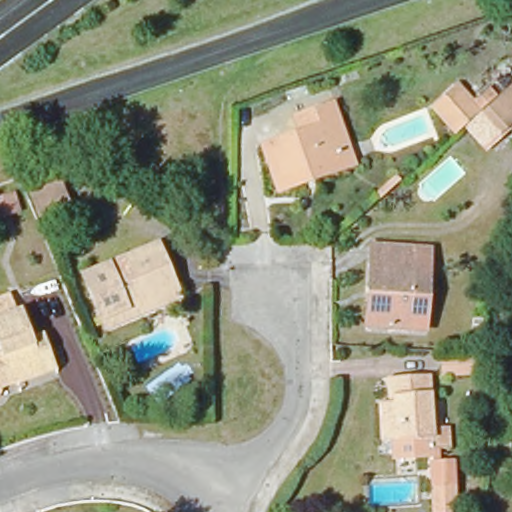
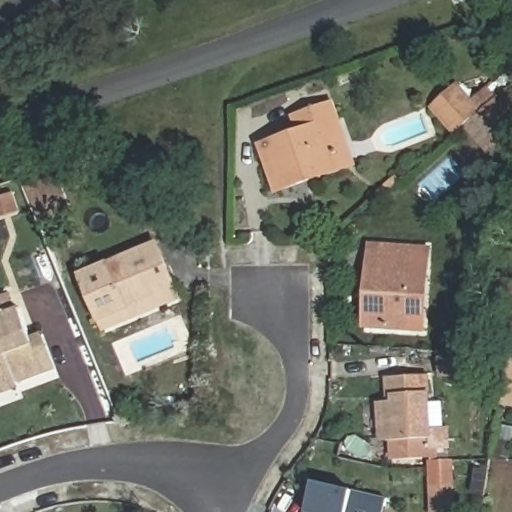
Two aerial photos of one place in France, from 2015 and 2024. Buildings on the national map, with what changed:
unchanged [(454,84),(472,100),(484,84),(497,97),(508,86),(512,90),(512,127),(498,137),(477,115),(455,140),(425,109),(454,84)]
unchanged [(323,125),(336,161),(304,172),(307,184),(278,194),(262,146),(304,131),(299,115),(334,104),(339,119),(323,125)]
unchanged [(355,166),(307,184),(304,172),(336,161),(323,125),(339,119),(355,166)]
unchanged [(23,189),(53,175),(70,214),(39,226),(23,189)]
unchanged [(117,324),(116,323),(99,330),(77,276),(154,245),(172,290),(176,300),(117,324)]
unchanged [(363,295),(367,245),(411,248),(405,330),(368,328),(361,328),(363,295)]
unchanged [(411,248),(429,249),(422,331),(405,330),(411,248)]
unchanged [(12,317),(15,316),(30,355),(41,351),(50,374),(0,393),(0,300),(5,298),(12,317)]
unchanged [(454,377),(445,377),(444,370),(444,361),(473,360),(475,375),(474,376),(454,377)]
unchanged [(380,443),(378,403),(387,402),(386,379),(432,377),(432,393),(433,427),(448,428),(451,512),(431,512),(429,459),(391,460),(390,443),(380,443)]
new [(309,512),(316,483),(353,491),(388,499),(385,512),(309,512)]

